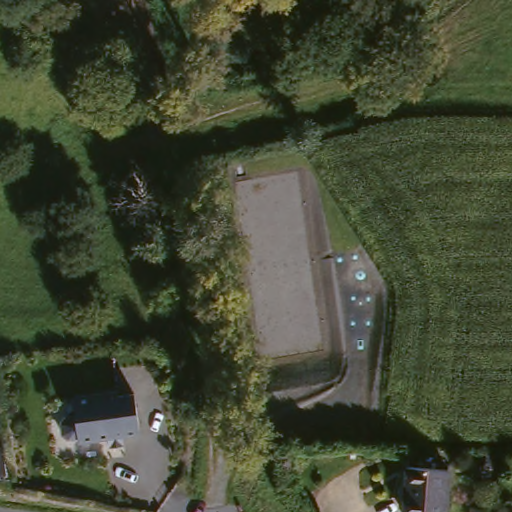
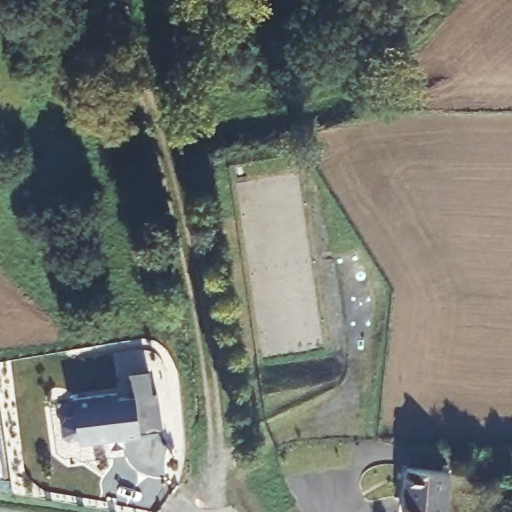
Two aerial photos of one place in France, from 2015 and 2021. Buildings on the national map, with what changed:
unchanged [(114,392),(115,397),(132,394),(138,433),(121,436),(122,445),(108,447),(106,438),(77,443),(76,438),(70,439),(57,434),(56,423),(65,417),(71,417),(70,399),(114,392)]
unchanged [(402,512),(404,466),(445,466),(444,512),(402,512)]

